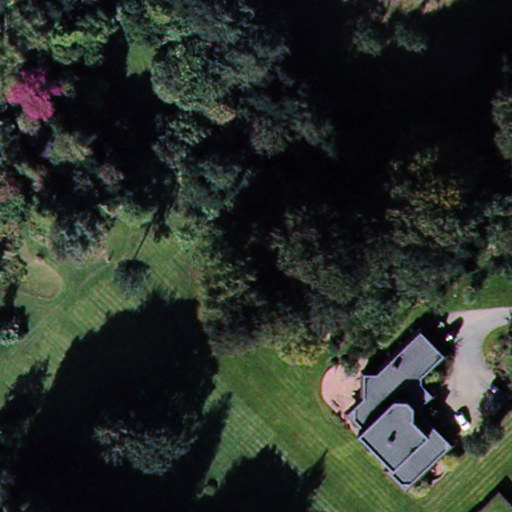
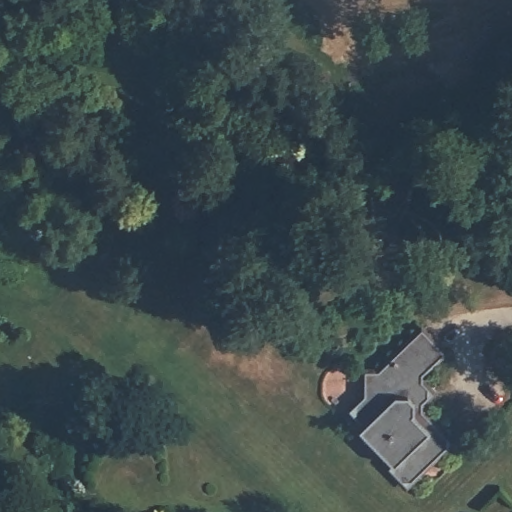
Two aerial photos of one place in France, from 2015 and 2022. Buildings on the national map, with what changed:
unchanged [(357,397),(360,370),(375,370),(421,326),(448,355),(422,382),(435,395),(422,409),(454,444),(403,492),(380,469),(387,462),(372,448),(366,446),(357,436),(360,435),(355,431),(357,429),(343,411),(357,397)]

